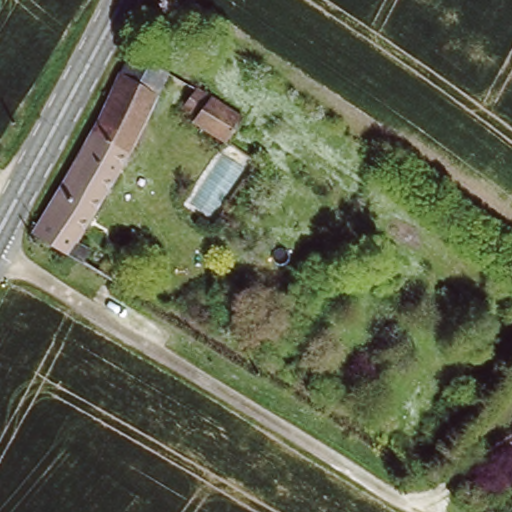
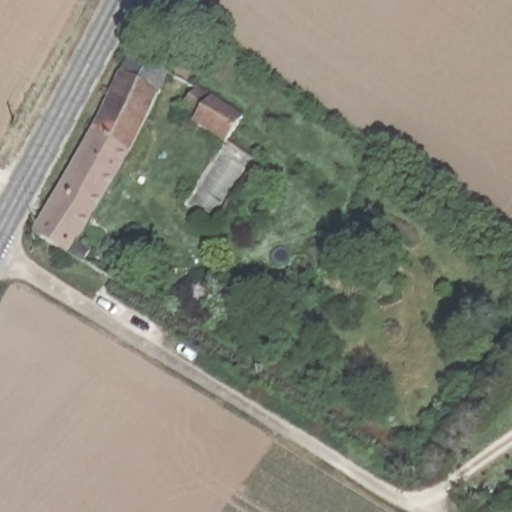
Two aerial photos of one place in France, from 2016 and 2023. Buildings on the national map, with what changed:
unchanged [(170,71),(156,93),(121,71),(133,49),(170,71)]
unchanged [(156,93),(131,145),(76,240),(91,249),(83,262),(34,234),(98,118),(121,71),(156,93)]
unchanged [(201,86),(249,115),(236,138),(201,118),(204,112),(190,104),(201,86)]

